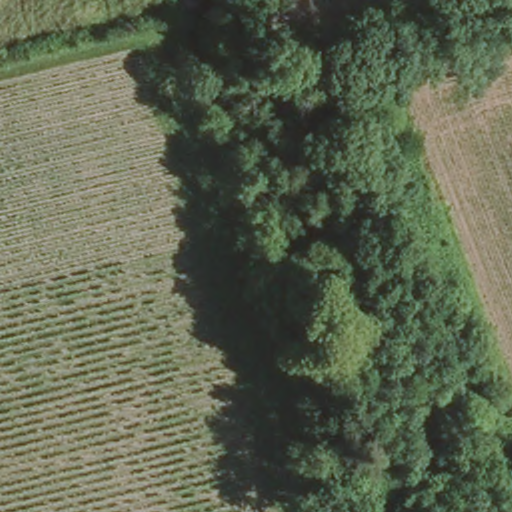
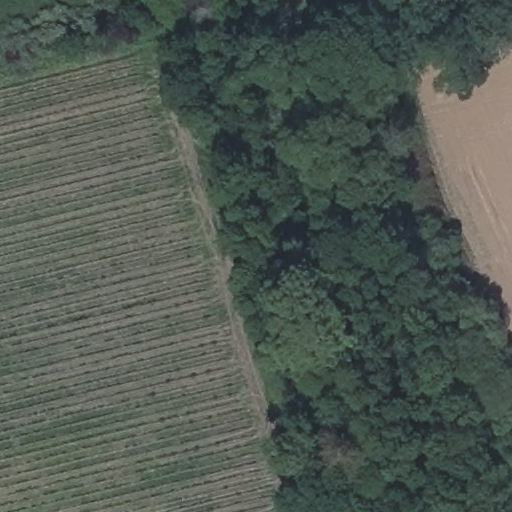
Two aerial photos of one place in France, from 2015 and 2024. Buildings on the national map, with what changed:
unchanged [(433,491),(409,497),(406,497),(399,473),(426,464),(433,491)]

